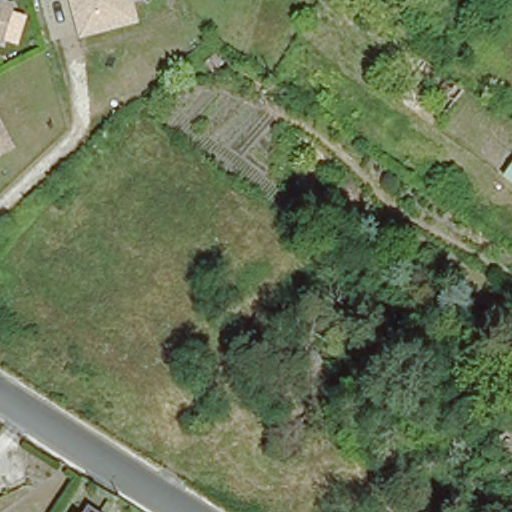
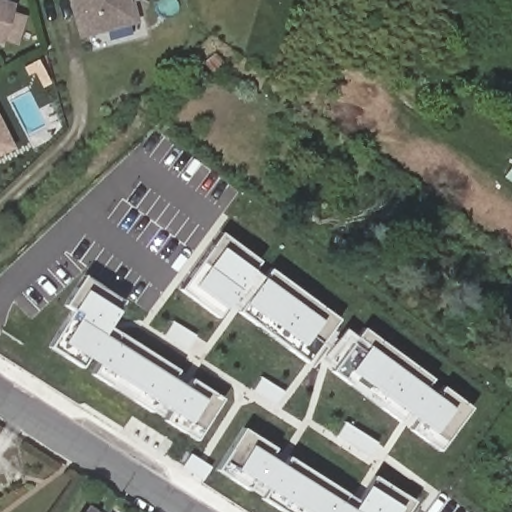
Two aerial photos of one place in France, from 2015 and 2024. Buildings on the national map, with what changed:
unchanged [(80,41),(70,0),(134,0),(140,25),(80,41)]
unchanged [(0,40),(0,8),(9,11),(0,40)]
unchanged [(0,158),(0,119),(16,150),(0,158)]
new [(339,319),(307,361),(234,302),(218,312),(181,285),(222,226),(339,319)]
new [(61,301),(44,320),(33,308),(24,317),(15,309),(24,300),(20,296),(36,278),(40,282),(63,258),(80,275),(58,298),(61,301)]
new [(133,306),(119,327),(230,398),(201,440),(58,345),(80,312),(72,303),(91,277),(133,306)]
new [(471,404),(438,451),(333,367),(360,328),(471,404)]
new [(276,448),(270,456),(281,462),(286,456),(355,502),(372,476),(411,501),(403,512),(281,512),(262,499),(265,492),(253,482),(247,491),(217,468),(243,429),(276,448)]
unchanged [(89,506),(93,508),(98,512),(84,512),(89,506)]

